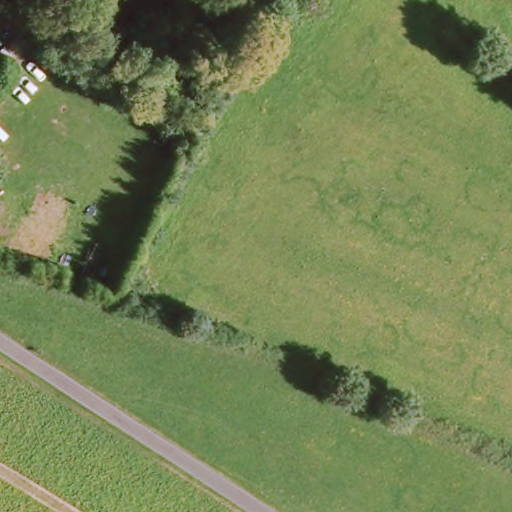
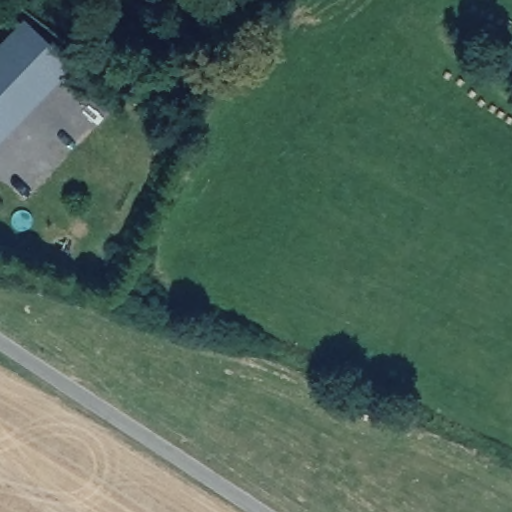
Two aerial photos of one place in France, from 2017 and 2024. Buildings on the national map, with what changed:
new [(32,40),(35,36),(70,69),(0,142),(0,45),(18,27),(32,40)]

